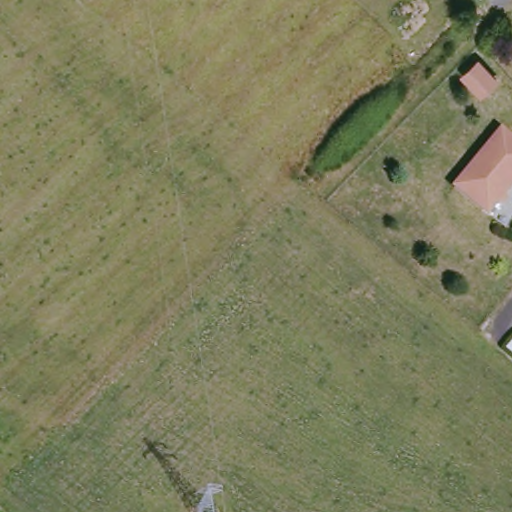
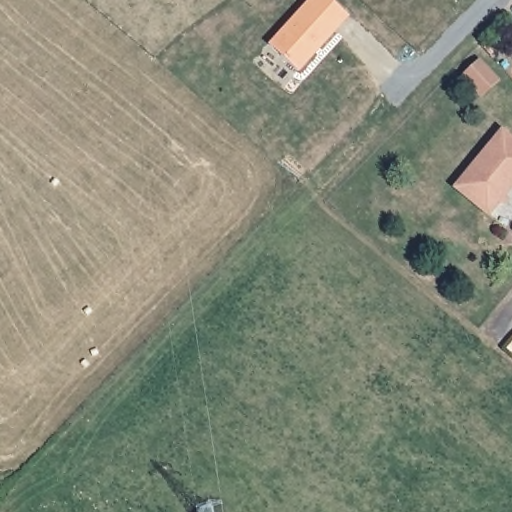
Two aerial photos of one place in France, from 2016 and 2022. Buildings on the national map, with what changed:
new [(331,0),(350,16),(299,73),(267,44),(307,0),(331,0)]
unchanged [(512,140),(512,191),(489,218),(456,189),(505,134),(512,140)]

